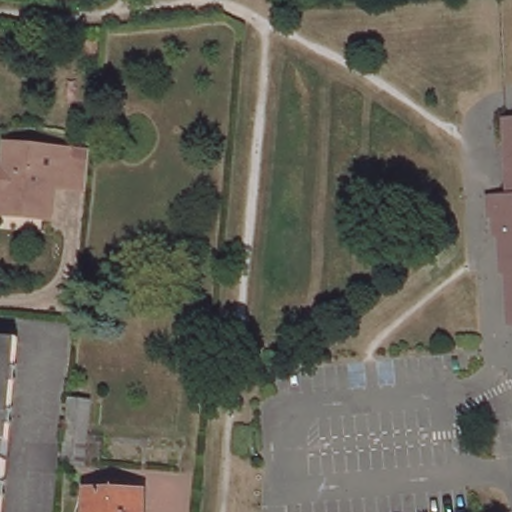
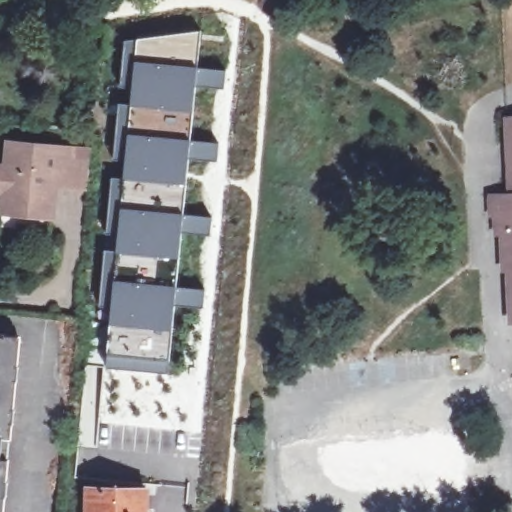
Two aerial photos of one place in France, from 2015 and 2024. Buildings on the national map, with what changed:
new [(200,32),(196,67),(171,332),(167,357),(107,352),(110,323),(131,104),(135,62),(137,39),(200,32)]
unchanged [(505,272),(499,272),(498,253),(498,237),(492,237),(491,216),(486,216),(485,192),(504,192),(501,116),(512,115),(512,324),(506,325),(505,272)]
unchanged [(0,212),(0,196),(1,191),(0,190),(0,167),(3,167),(7,142),(69,149),(68,159),(87,161),(85,187),(65,185),(53,184),(52,195),(50,210),(49,217),(17,214),(0,212)]
unchanged [(18,337),(12,395),(0,394),(0,336),(18,337)]
demolished [(65,442),(68,405),(70,387),(94,390),(87,453),(64,451),(65,442)]
unchanged [(5,476),(2,512),(0,512),(0,394),(12,395),(5,476)]
unchanged [(83,512),(83,489),(142,488),(143,512),(83,512)]

